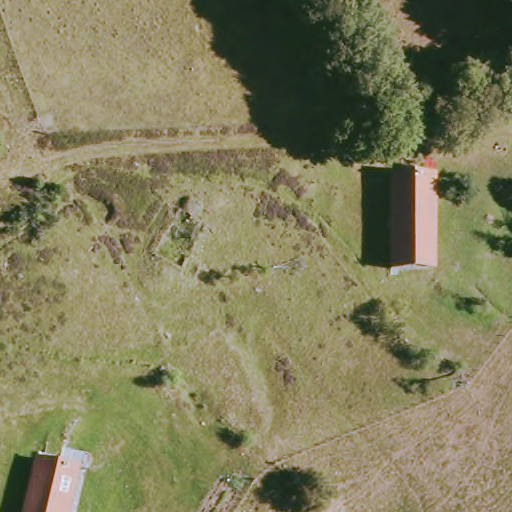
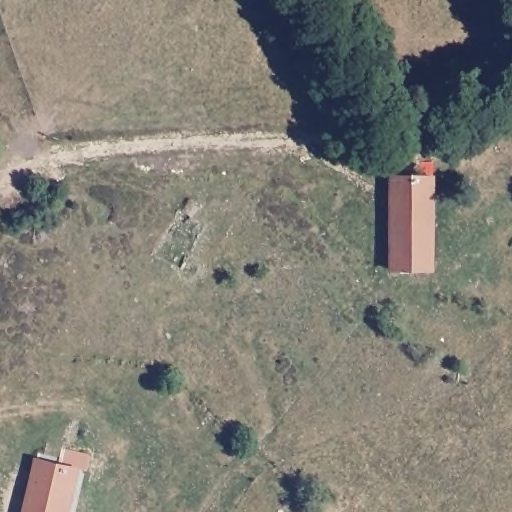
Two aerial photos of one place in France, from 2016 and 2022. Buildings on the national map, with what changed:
unchanged [(429,178),(435,276),(398,277),(386,181),(429,178)]
unchanged [(61,465),(66,440),(94,448),(90,473),(73,468),(63,512),(19,512),(32,458),(61,465)]

